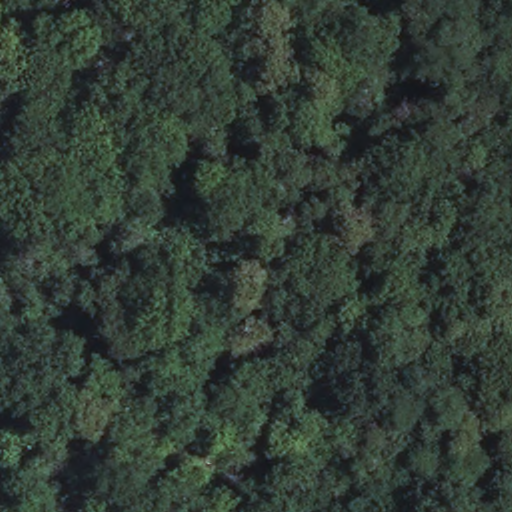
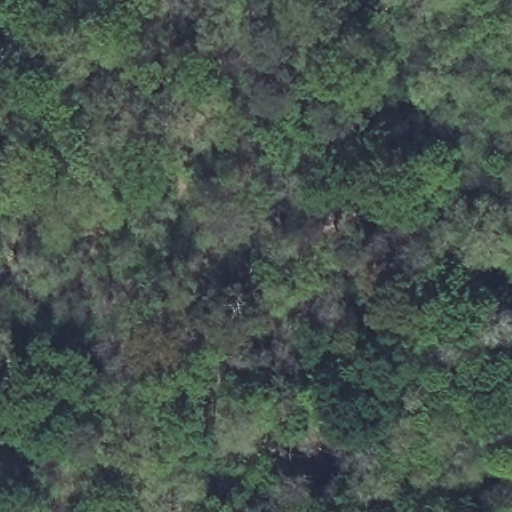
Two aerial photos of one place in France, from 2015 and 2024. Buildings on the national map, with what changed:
[]

